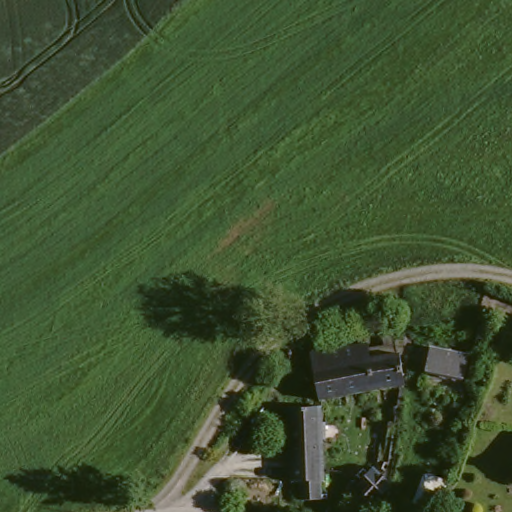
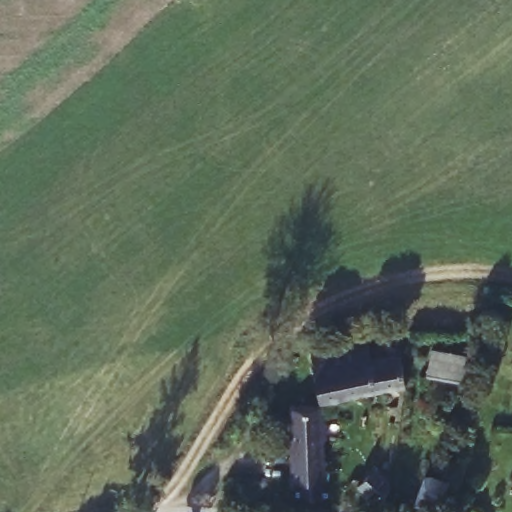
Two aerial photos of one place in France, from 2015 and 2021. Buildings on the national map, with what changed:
unchanged [(377,389),(321,398),(316,349),(400,338),(404,387),(377,389)]
unchanged [(428,364),(436,343),(477,359),(469,380),(428,364)]
unchanged [(321,478),(324,494),(321,498),(298,499),(294,477),(286,408),(321,404),(329,477),(321,478)]
unchanged [(421,500),(433,469),(457,479),(445,510),(444,512),(417,512),(421,500)]

